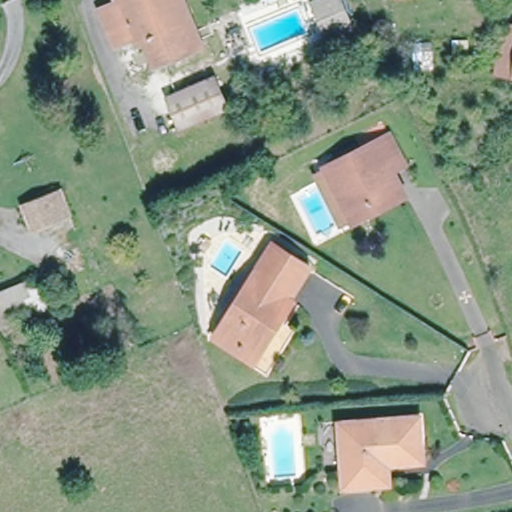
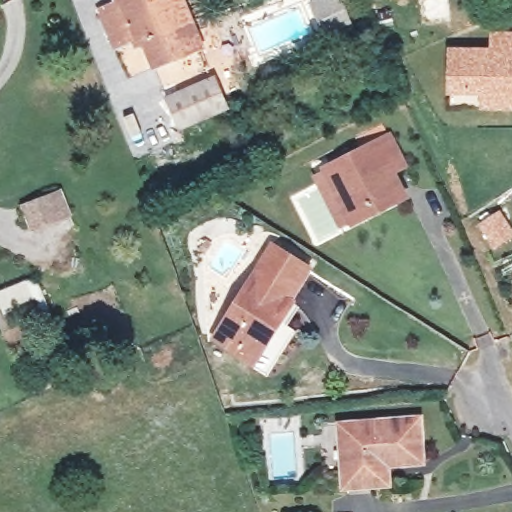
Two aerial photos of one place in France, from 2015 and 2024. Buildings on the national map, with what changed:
unchanged [(200,46),(199,46),(152,65),(142,43),(134,46),(132,40),(114,46),(100,11),(117,5),(115,0),(180,0),(200,46)]
unchanged [(350,29),(325,39),(310,4),(318,0),(337,0),(350,29)]
demolished [(503,74),(512,22),(512,75),(503,74)]
new [(512,30),(512,110),(482,110),(482,94),(448,94),(449,46),(490,47),(490,30),(512,30)]
unchanged [(168,100),(214,80),(225,107),(180,126),(168,100)]
unchanged [(316,170),(326,165),(387,135),(402,162),(388,169),(401,195),(353,217),(342,223),(316,170)]
unchanged [(23,204),(61,190),(65,199),(71,213),(61,216),(32,227),(23,204)]
unchanged [(310,267),(253,365),(212,338),(268,241),(310,267)]
unchanged [(60,280),(46,285),(42,276),(57,270),(60,280)]
unchanged [(40,292),(0,308),(0,292),(35,280),(40,292)]
unchanged [(366,485),(342,487),(336,425),(413,419),(417,461),(382,464),(383,483),(366,485)]

